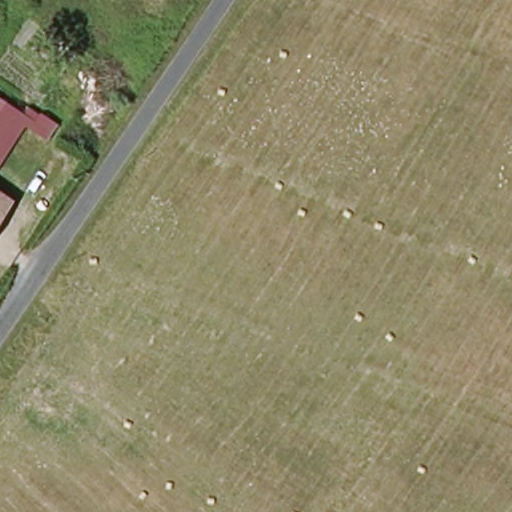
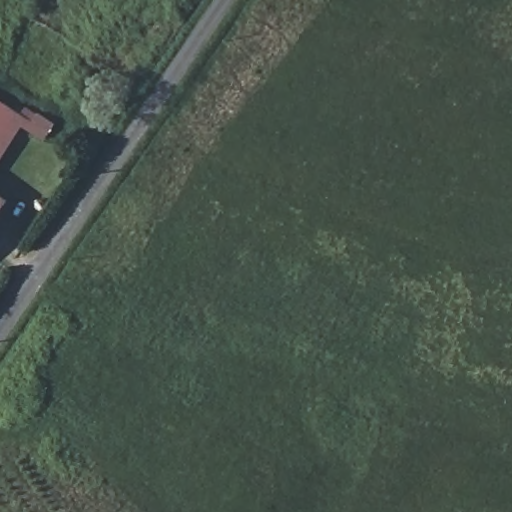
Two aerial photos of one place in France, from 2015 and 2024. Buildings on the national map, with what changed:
unchanged [(26,107),(55,124),(45,139),(24,126),(0,159),(0,100),(21,114),(26,107)]
unchanged [(0,223),(0,190),(15,201),(0,223)]

